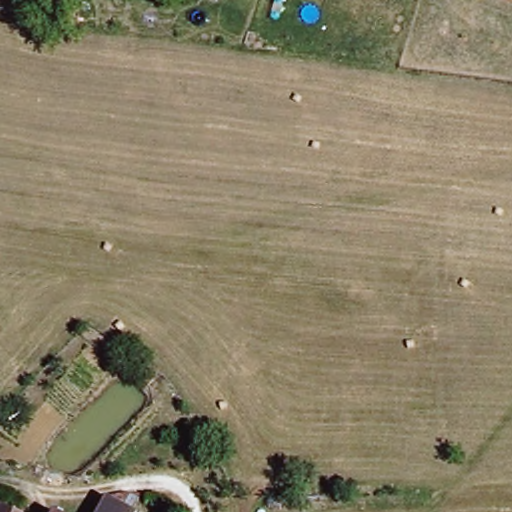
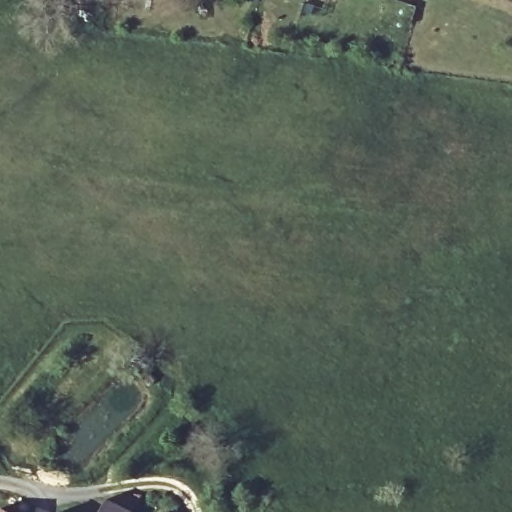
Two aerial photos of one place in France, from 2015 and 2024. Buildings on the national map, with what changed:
unchanged [(129,512),(93,512),(98,498),(129,512)]
unchanged [(2,509),(7,512),(1,512),(2,509)]

